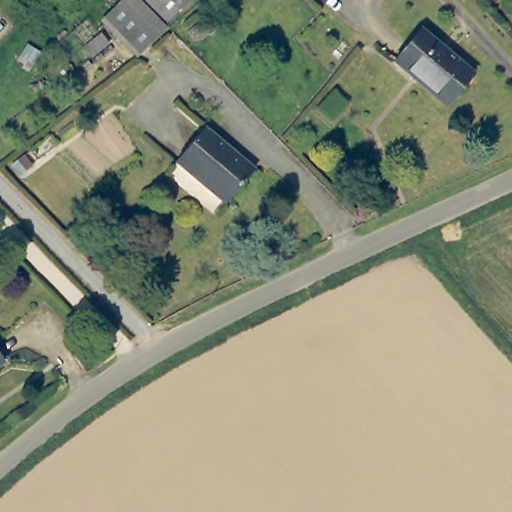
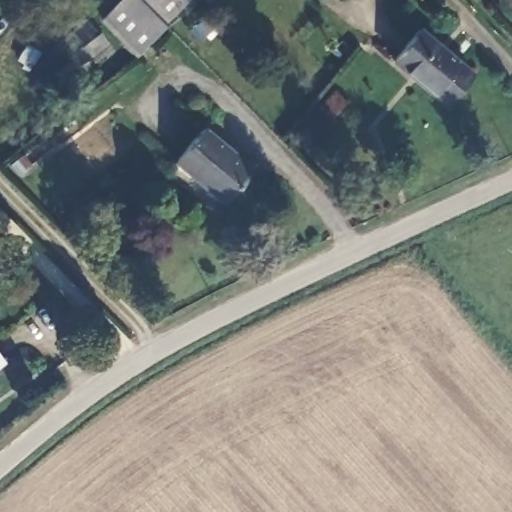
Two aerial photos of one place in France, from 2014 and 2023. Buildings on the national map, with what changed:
unchanged [(109,0),(131,0),(155,25),(145,35),(128,50),(93,16),(109,0)]
unchanged [(138,0),(176,0),(157,18),(138,0)]
unchanged [(471,76),(446,107),(393,63),(418,34),(471,76)]
unchanged [(247,175),(217,207),(170,165),(201,133),(247,175)]

